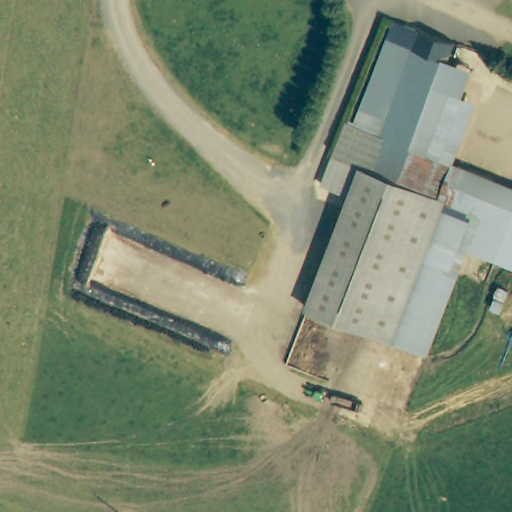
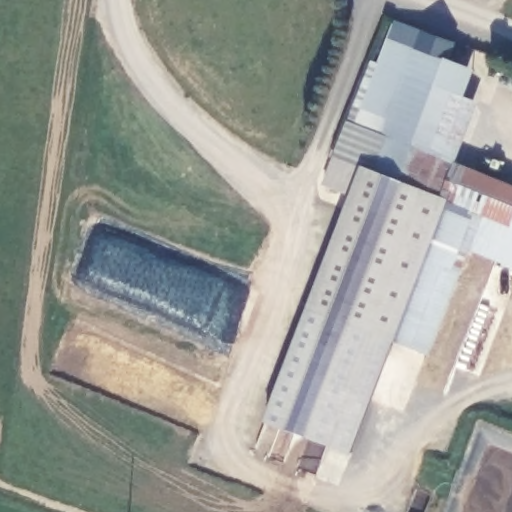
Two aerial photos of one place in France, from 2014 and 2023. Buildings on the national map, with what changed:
unchanged [(458,44),(444,87),(481,101),(456,162),(512,184),(512,266),(472,250),(429,354),(311,310),(353,196),(333,187),(397,22),(458,44)]
new [(311,310),(393,341),(351,453),(262,421),(311,310)]

